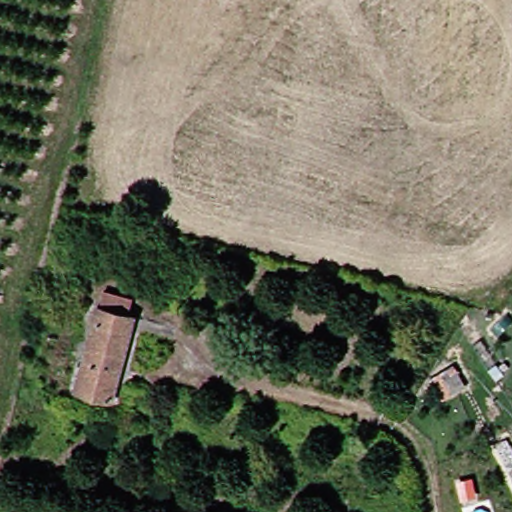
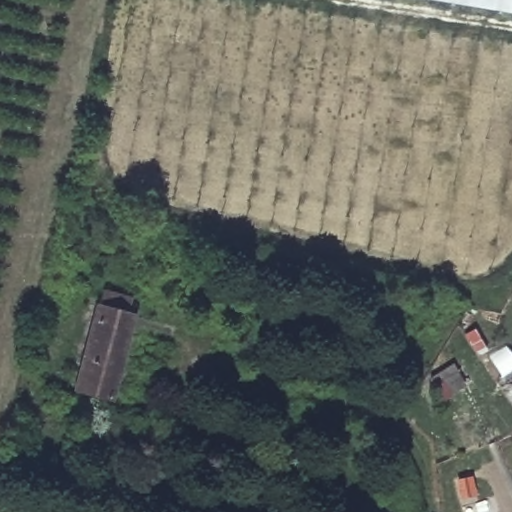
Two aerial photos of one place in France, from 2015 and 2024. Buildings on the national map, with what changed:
new [(512,16),(420,0),(512,0),(512,16)]
unchanged [(135,322),(113,403),(76,394),(99,312),(135,322)]

